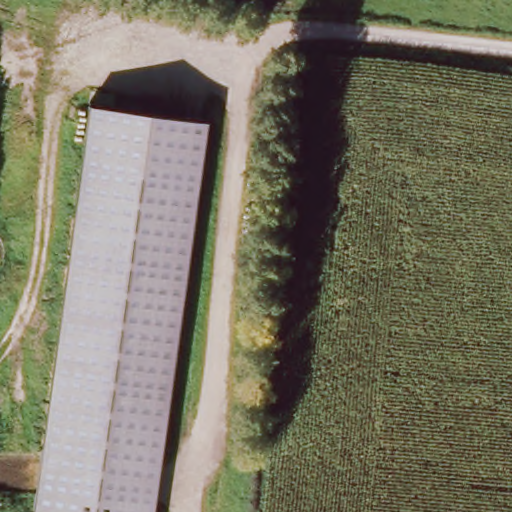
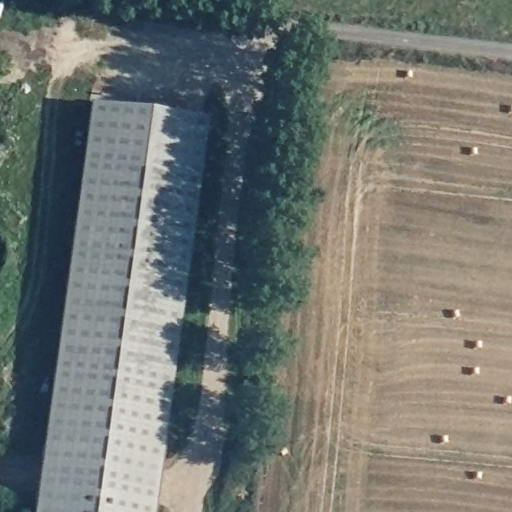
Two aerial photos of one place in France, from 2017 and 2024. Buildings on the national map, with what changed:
unchanged [(155,512),(36,512),(92,104),(206,117),(155,512)]

